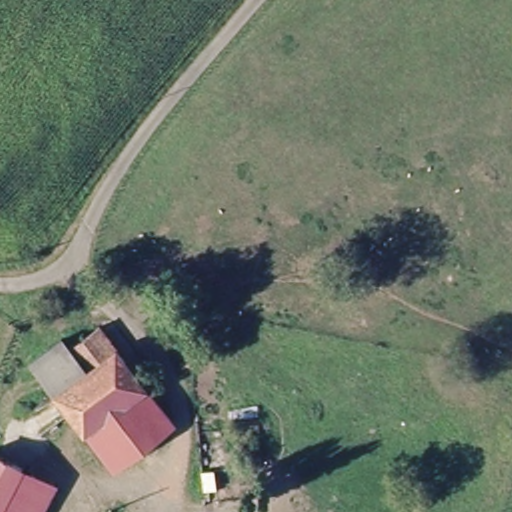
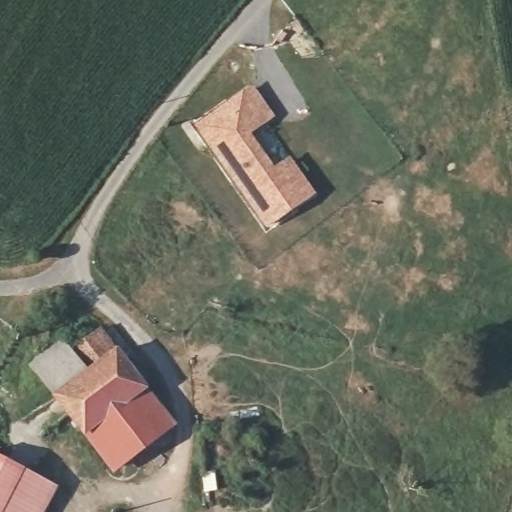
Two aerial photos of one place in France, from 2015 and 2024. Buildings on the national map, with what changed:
new [(288,160),(311,193),(267,224),(197,125),(250,88),(270,115),(245,132),(261,154),(272,170),(288,160)]
unchanged [(114,472),(58,399),(34,367),(57,345),(69,356),(98,331),(113,352),(171,427),(114,472)]
unchanged [(1,512),(0,512),(0,458),(23,469),(1,512)]
unchanged [(38,512),(1,512),(23,469),(52,483),(38,512)]

